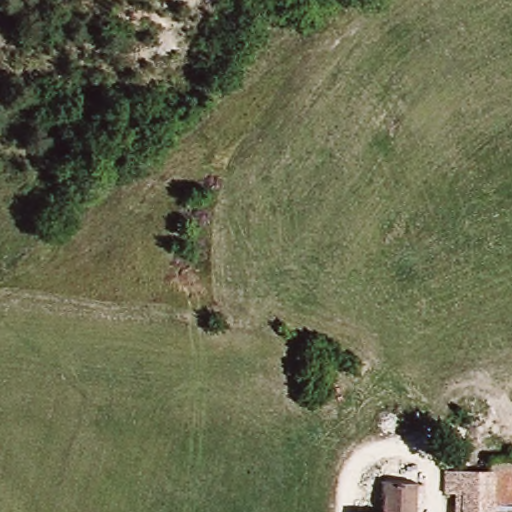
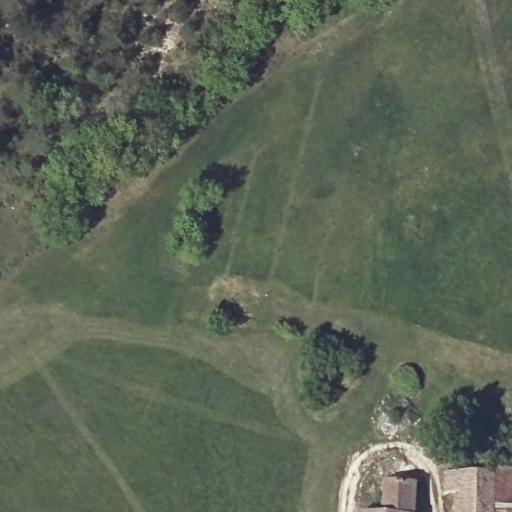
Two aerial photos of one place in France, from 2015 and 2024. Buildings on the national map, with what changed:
unchanged [(458,498),(440,497),(441,474),(482,476),(483,462),(512,463),(512,512),(501,512),(494,511),(493,512),(457,512),(458,498)]
unchanged [(363,485),(417,486),(415,512),(361,512),(363,485)]

